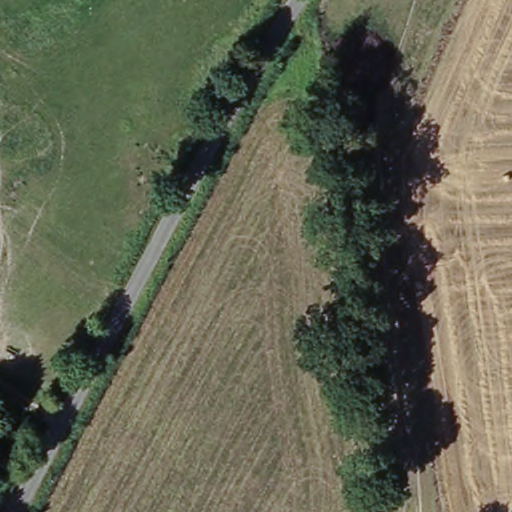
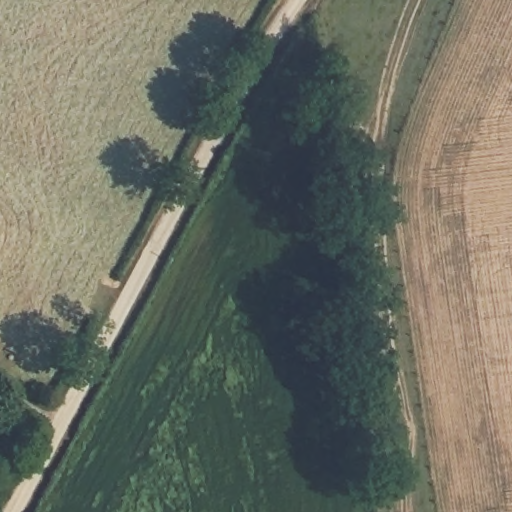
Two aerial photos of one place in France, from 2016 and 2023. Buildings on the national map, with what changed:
[]

